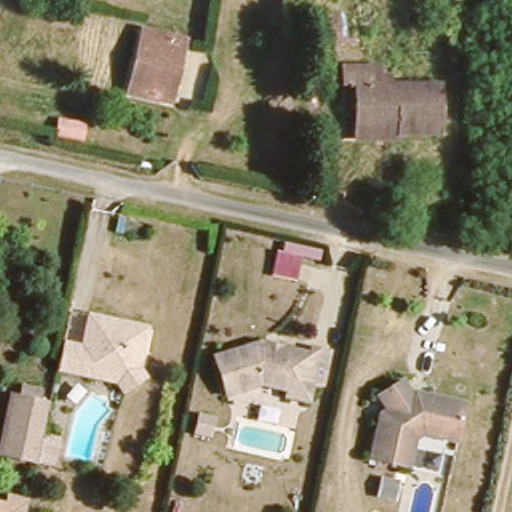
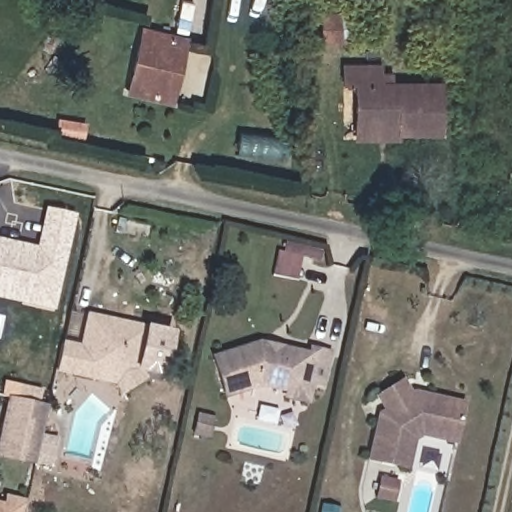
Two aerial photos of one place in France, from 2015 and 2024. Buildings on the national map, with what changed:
unchanged [(323,4),(346,4),(358,4),(358,31),(346,31),(323,31),(323,4)]
unchanged [(166,96),(129,87),(143,27),(167,32),(186,36),(179,66),(173,65),(170,80),(166,96)]
unchanged [(357,134),(357,121),(357,82),(342,81),(342,62),(381,61),(381,79),(438,79),(440,129),(400,129),(400,134),(357,134)]
unchanged [(90,122),(85,141),(52,133),(58,115),(90,122)]
new [(36,246),(45,207),(77,214),(54,312),(0,299),(0,239),(36,246)]
unchanged [(144,373),(123,387),(117,378),(100,374),(57,365),(64,340),(88,346),(91,335),(85,335),(90,312),(146,324),(142,347),(138,364),(144,373)]
unchanged [(282,393),(282,386),(254,381),(221,392),(207,353),(252,339),(260,340),(275,343),(305,350),(306,344),(322,347),(316,379),(306,377),(302,396),(282,393)]
unchanged [(401,382),(410,396),(413,394),(427,396),(464,404),(457,443),(421,436),(413,441),(407,469),(369,461),(377,417),(385,412),(377,396),(401,382)]
unchanged [(47,402),(34,459),(0,452),(0,434),(8,394),(47,402)]
unchanged [(2,503),(4,494),(25,499),(22,512),(0,512),(0,503),(2,503)]

